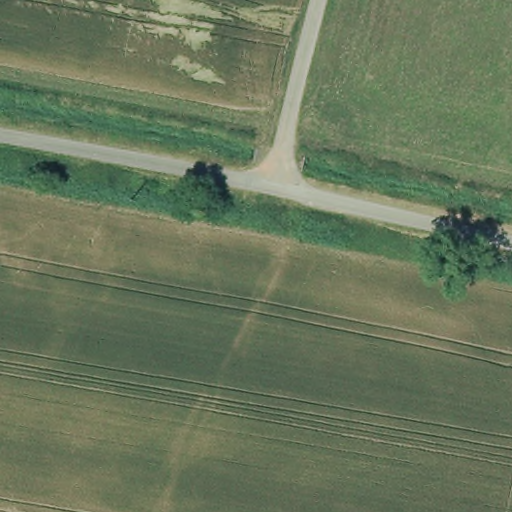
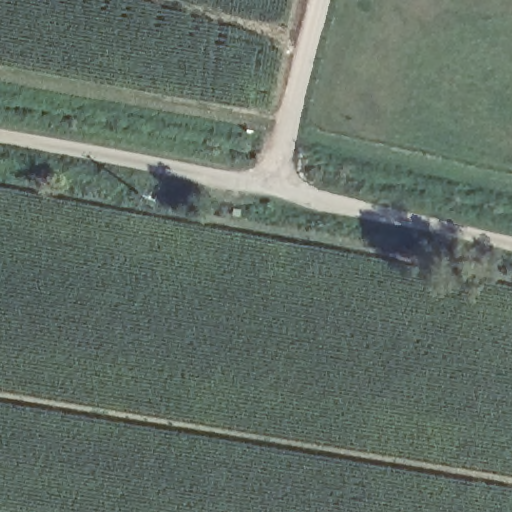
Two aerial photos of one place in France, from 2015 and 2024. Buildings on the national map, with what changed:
[]

